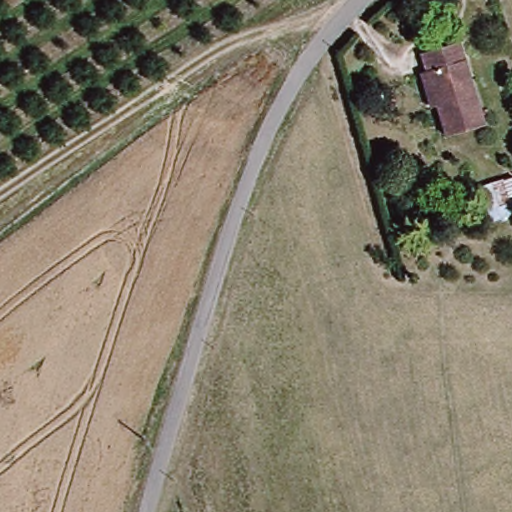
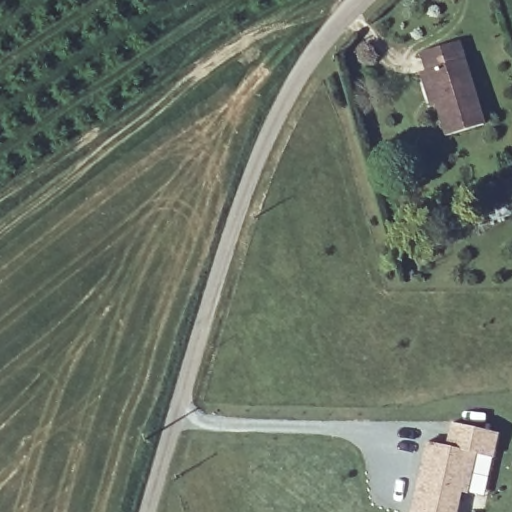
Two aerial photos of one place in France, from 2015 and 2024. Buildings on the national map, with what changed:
unchanged [(488,123),(450,133),(427,54),(466,43),(488,123)]
new [(445,446),(451,422),(499,433),(493,458),(477,455),(470,493),(463,492),(458,512),(409,512),(426,441),(445,446)]

